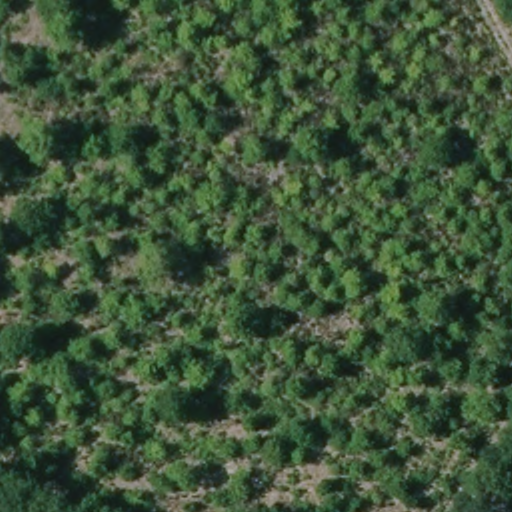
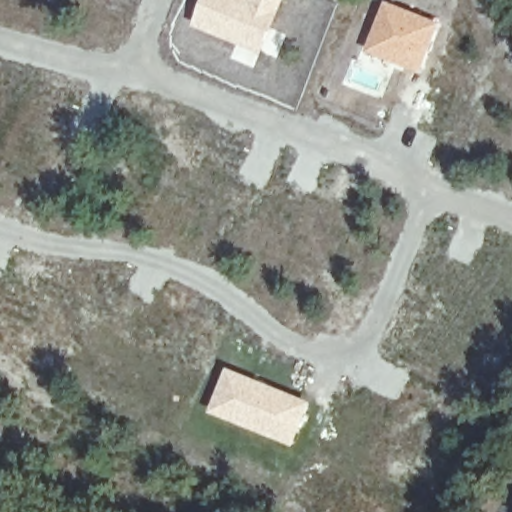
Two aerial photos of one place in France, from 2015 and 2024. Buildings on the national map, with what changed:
new [(283,0),(272,28),(286,34),(275,59),(260,54),(253,69),(229,59),(235,45),(192,26),(203,0),(283,0)]
new [(384,1),(440,22),(419,75),(364,52),(384,1)]
new [(227,367),(311,402),(293,448),(207,413),(227,367)]

